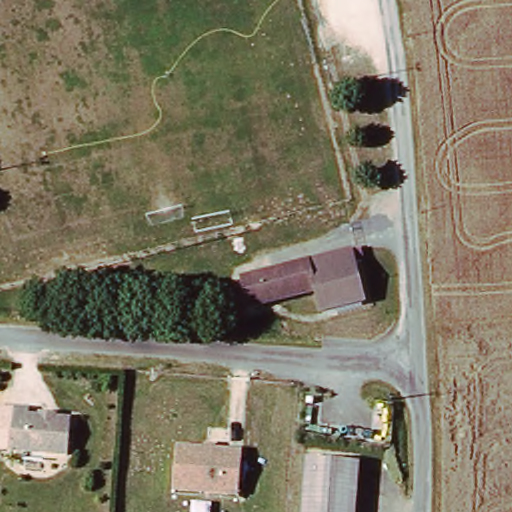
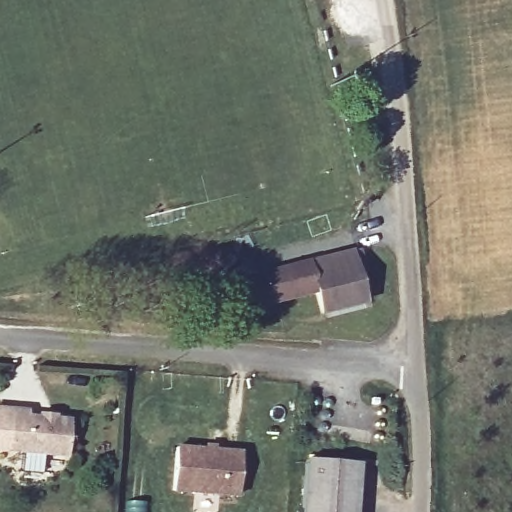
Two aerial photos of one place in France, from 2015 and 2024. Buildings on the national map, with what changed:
unchanged [(369,304),(317,317),(311,295),(244,312),(237,282),(260,277),(307,266),(356,254),(369,304)]
unchanged [(75,421),(72,455),(14,450),(17,410),(33,412),(32,417),(75,421)]
unchanged [(240,495),(175,490),(175,483),(177,447),(242,452),(240,486),(240,495)]
unchanged [(307,494),(307,464),(361,467),(359,497),(307,494)]
unchanged [(358,512),(305,512),(307,494),(359,497),(358,512)]

